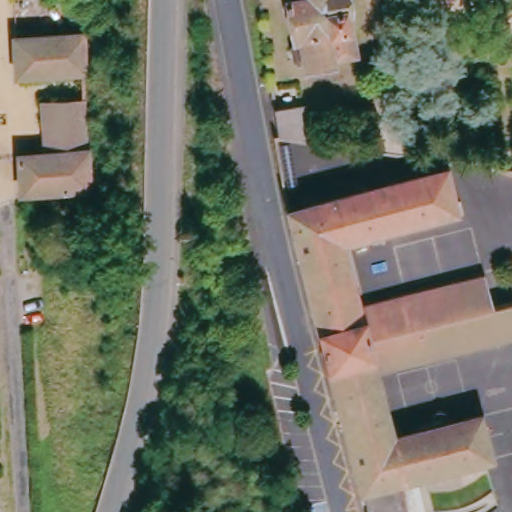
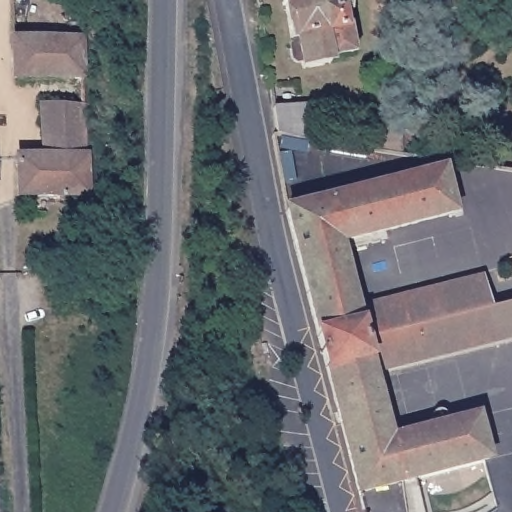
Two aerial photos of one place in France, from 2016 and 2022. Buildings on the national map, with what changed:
unchanged [(347,0),(350,18),(344,19),(345,34),(352,33),(355,60),(330,61),(331,69),(301,72),(298,47),(290,48),(285,1),(293,0),(347,0)]
unchanged [(78,40),(78,77),(11,80),(10,42),(78,40)]
unchanged [(47,155),(47,100),(85,100),(87,154),(47,155)]
unchanged [(271,114),(270,104),(282,102),(283,112),(299,110),(304,145),(266,140),(263,115),(271,114)]
unchanged [(88,192),(21,192),(20,155),(47,155),(87,154),(88,192)]
unchanged [(349,483),(280,211),(438,171),(450,218),(336,245),(354,313),(364,348),(406,337),(414,365),(370,375),(385,435),(472,414),(481,460),(351,493),(349,483)]
unchanged [(364,348),(354,313),(479,280),(487,315),(509,310),(512,322),(512,340),(414,365),(406,337),(364,348)]

